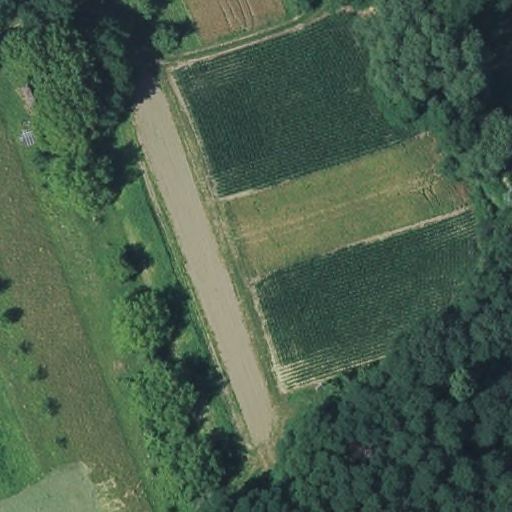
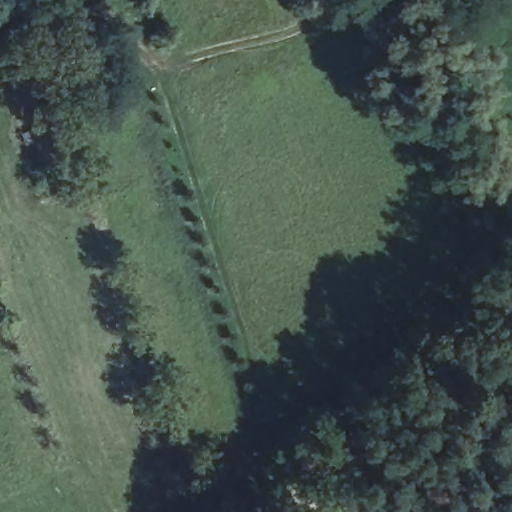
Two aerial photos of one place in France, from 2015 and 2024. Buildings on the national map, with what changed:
unchanged [(326,421),(339,424),(335,440),(323,437),(326,421)]

